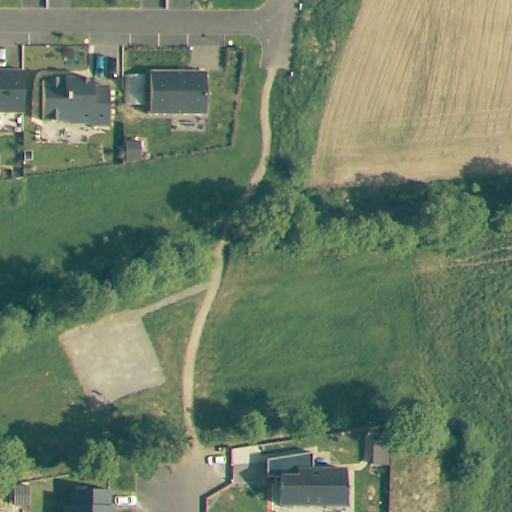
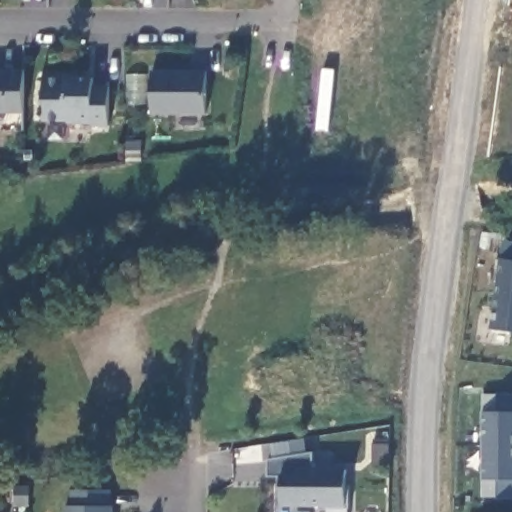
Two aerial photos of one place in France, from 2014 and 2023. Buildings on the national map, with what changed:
unchanged [(25,114),(0,113),(0,71),(25,71),(25,114)]
unchanged [(206,72),(206,115),(150,115),(151,71),(206,72)]
unchanged [(50,76),(76,75),(76,79),(92,79),(94,86),(109,87),(110,127),(91,127),(90,124),(69,124),(69,122),(43,122),(44,84),(50,76)]
new [(500,257),(512,259),(512,332),(487,328),(500,257)]
new [(483,393),(496,393),(496,411),(512,411),(512,445),(483,445),(483,393)]
new [(483,445),(512,445),(512,478),(496,478),(496,496),(482,496),(483,445)]
unchanged [(347,507),(281,506),(281,475),(266,475),(267,460),(312,453),(313,468),(346,468),(347,507)]
unchanged [(65,506),(70,506),(71,491),(110,492),(110,507),(113,507),(113,512),(65,512),(65,506)]

